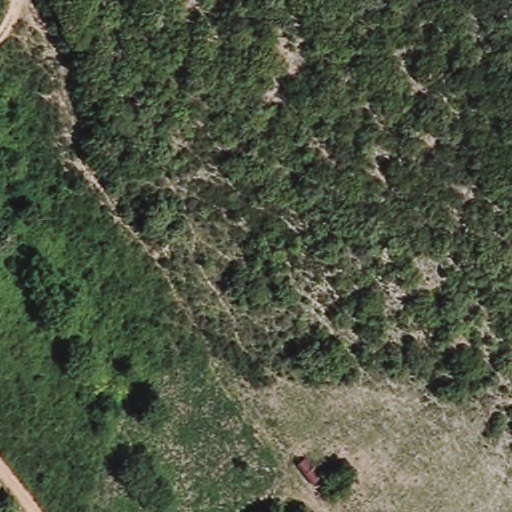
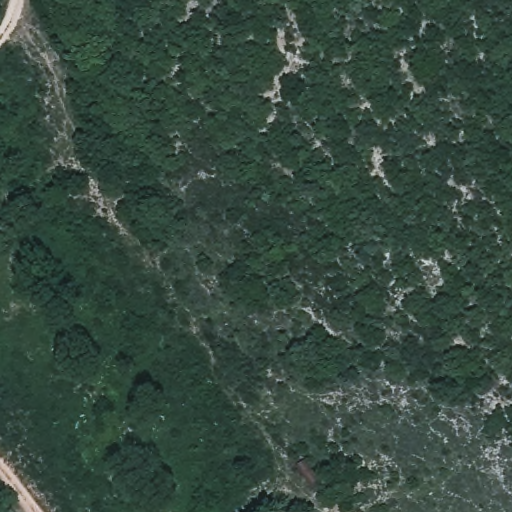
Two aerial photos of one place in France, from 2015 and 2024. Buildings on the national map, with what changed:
unchanged [(288,511),(289,512),(287,512),(288,511)]

